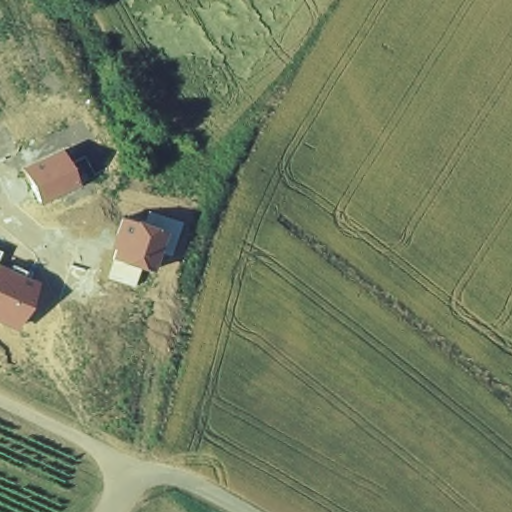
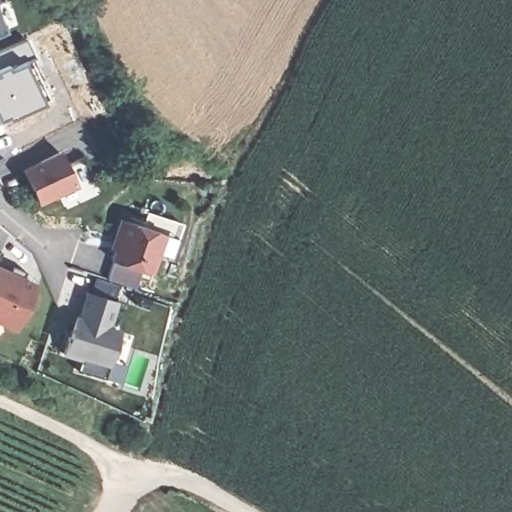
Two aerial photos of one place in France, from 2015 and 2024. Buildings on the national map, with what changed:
new [(0,34),(0,19),(5,32),(0,34)]
new [(24,38),(52,96),(0,122),(0,50),(24,38)]
unchanged [(61,150),(77,188),(39,204),(21,169),(61,150)]
unchanged [(141,224),(145,213),(181,224),(172,256),(158,253),(153,272),(111,260),(113,251),(108,249),(119,217),(141,224)]
unchanged [(39,281),(19,330),(0,322),(0,266),(39,281)]
new [(112,327),(121,329),(108,367),(81,360),(80,361),(62,357),(74,315),(78,317),(85,293),(119,302),(112,327)]

